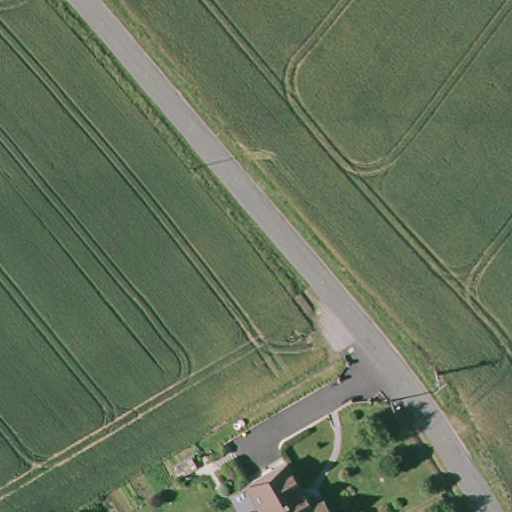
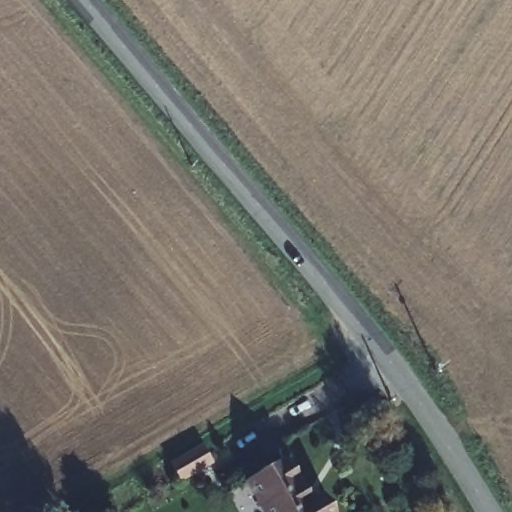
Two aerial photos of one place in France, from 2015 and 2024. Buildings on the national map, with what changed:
unchanged [(245,476),(285,458),(304,499),(317,494),(324,512),(262,512),(245,476)]

